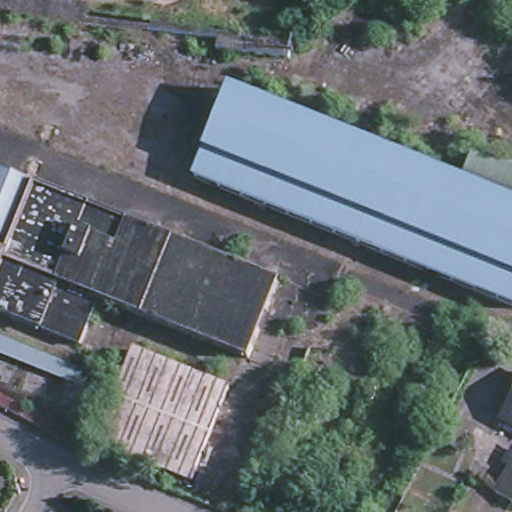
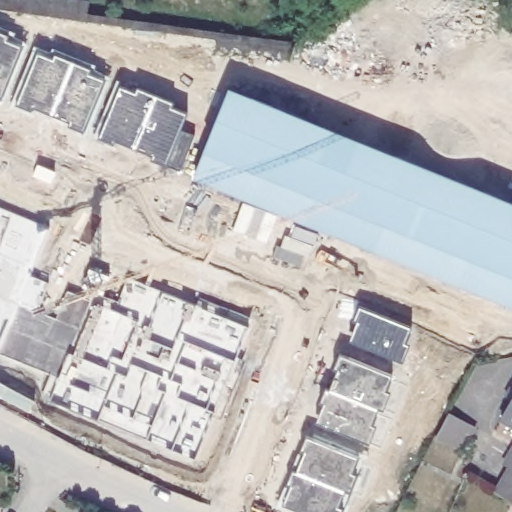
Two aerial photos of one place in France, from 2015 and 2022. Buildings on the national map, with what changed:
unchanged [(89,5),(290,38),(290,55),(215,48),(212,39),(0,10),(0,0),(83,0),(89,5)]
new [(512,12),(512,24),(507,22),(512,12)]
new [(5,43),(20,49),(0,101),(0,36),(7,38),(5,43)]
new [(52,62),(56,57),(90,71),(88,76),(104,82),(85,135),(68,128),(69,124),(34,109),(30,113),(15,107),(37,56),(52,62)]
new [(136,95),(139,91),(170,105),(169,108),(185,117),(180,130),(195,136),(181,173),(152,163),(154,160),(117,143),(114,146),(99,140),(120,89),(136,95)]
unchanged [(200,179),(236,89),(469,184),(512,202),(512,305),(200,179)]
unchanged [(469,184),(480,156),(512,169),(512,202),(469,184)]
demolished [(252,360),(102,300),(83,344),(0,311),(0,171),(282,285),(252,360)]
new [(29,277),(46,283),(37,310),(57,319),(67,294),(81,299),(92,268),(112,274),(103,297),(117,301),(127,279),(247,328),(237,360),(245,362),(224,421),(212,416),(195,460),(50,403),(58,379),(0,355),(0,209),(48,230),(29,277)]
new [(410,330),(404,345),(408,348),(402,363),(350,342),(359,322),(355,320),(360,308),(410,330)]
new [(392,378),(386,393),(390,394),(383,413),(378,411),(372,426),(375,428),(367,448),(315,428),(324,405),(321,403),(327,390),(330,393),(339,371),(334,370),(340,358),(392,378)]
unchanged [(502,418),(512,398),(512,424),(502,418)]
unchanged [(470,426),(457,451),(435,439),(448,414),(470,426)]
unchanged [(425,452),(395,439),(402,422),(434,436),(425,452)]
new [(350,476),(356,478),(350,494),(344,492),(337,509),(340,512),(290,512),(279,507),(292,473),(297,475),(306,453),(302,451),(305,439),(357,460),(350,476)]
unchanged [(505,494),(512,482),(512,498),(505,494)]

